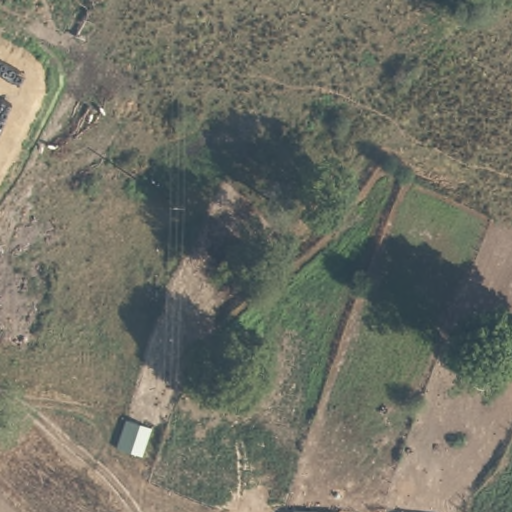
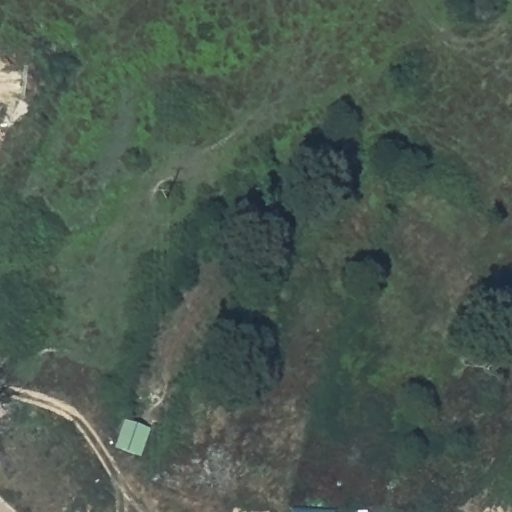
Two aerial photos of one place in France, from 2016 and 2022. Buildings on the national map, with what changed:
unchanged [(324,512),(294,512),(294,509),(324,512)]

